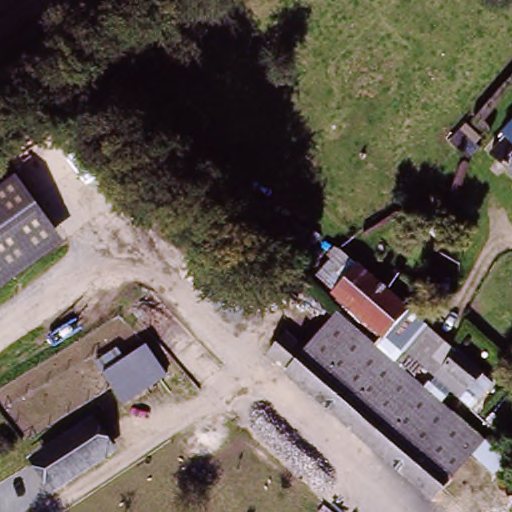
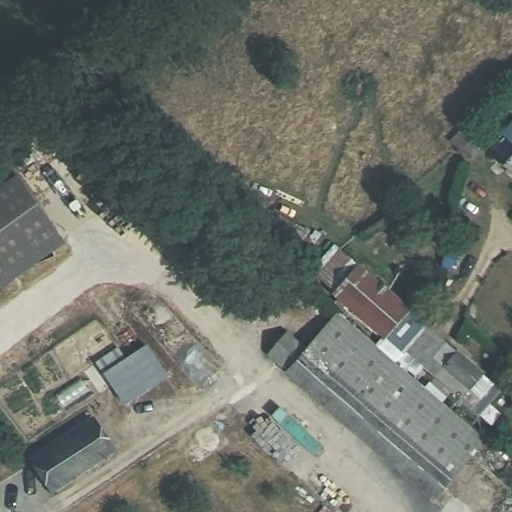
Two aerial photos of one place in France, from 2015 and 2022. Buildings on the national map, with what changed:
unchanged [(512,122),(512,125),(510,124),(512,122)]
unchanged [(468,157),(450,140),(461,128),(480,146),(468,157)]
unchanged [(512,130),(512,169),(493,151),(512,130)]
unchanged [(64,241),(0,286),(0,212),(28,192),(64,241)]
unchanged [(385,335),(335,292),(317,276),(340,250),(357,266),(408,310),(385,335)]
unchanged [(397,358),(403,352),(385,335),(408,310),(426,325),(425,327),(443,344),(425,365),(416,375),(397,358)]
unchanged [(432,498),(267,355),(286,332),(306,350),(337,314),(483,440),(508,461),(500,472),(475,450),(432,498)]
unchanged [(462,395),(461,396),(425,365),(443,344),(445,342),(455,350),(456,350),(482,371),(491,382),(480,395),(472,405),(462,395)]
unchanged [(167,380),(125,407),(106,377),(149,350),(167,380)]
unchanged [(106,458),(54,492),(38,467),(90,433),(106,458)]

